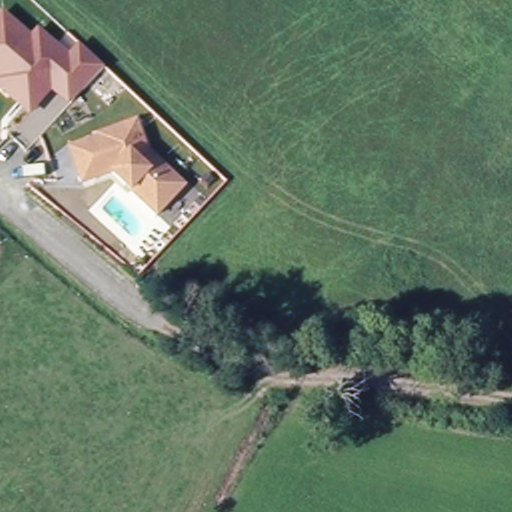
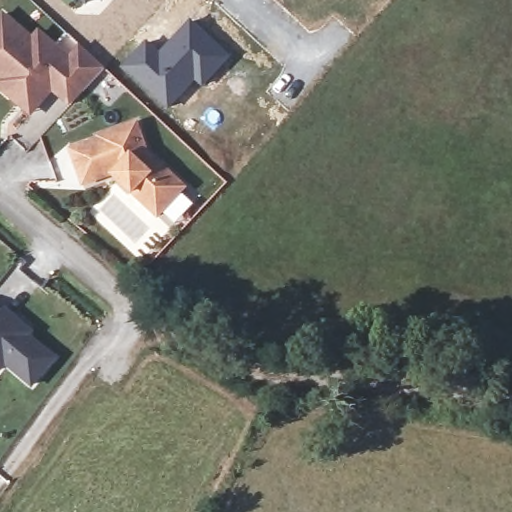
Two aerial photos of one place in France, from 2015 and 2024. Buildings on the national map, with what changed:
new [(85,6),(80,0),(92,0),(85,6)]
unchanged [(0,83),(0,15),(4,11),(33,38),(40,31),(72,62),(84,49),(104,68),(83,91),(71,104),(52,87),(33,107),(30,111),(11,93),(0,83)]
new [(145,39),(158,51),(191,17),(232,55),(201,87),(195,82),(168,109),(119,64),(145,39)]
unchanged [(186,186),(158,215),(113,172),(84,184),(71,149),(100,137),(99,136),(137,122),(147,150),(186,186)]
new [(4,306),(30,328),(27,332),(53,355),(31,382),(4,359),(0,364),(0,310),(4,306)]

